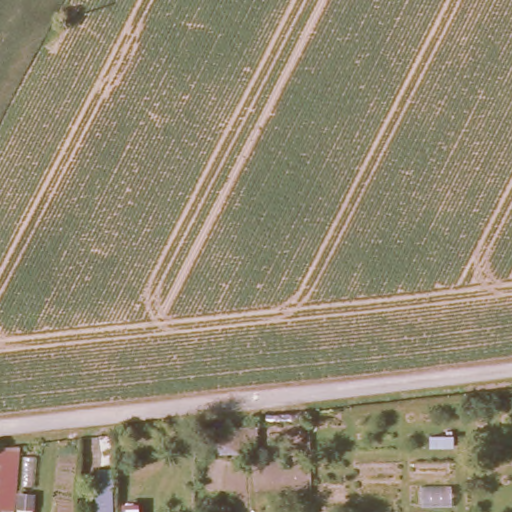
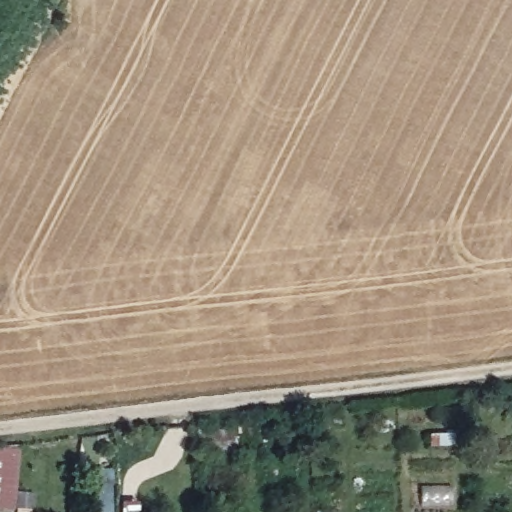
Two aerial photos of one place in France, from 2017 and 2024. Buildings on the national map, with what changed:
unchanged [(195,429),(254,430),(253,455),(195,456),(195,429)]
unchanged [(20,448),(19,471),(33,470),(32,511),(0,509),(0,449),(20,448)]
unchanged [(113,486),(113,512),(94,512),(94,487),(113,486)]

